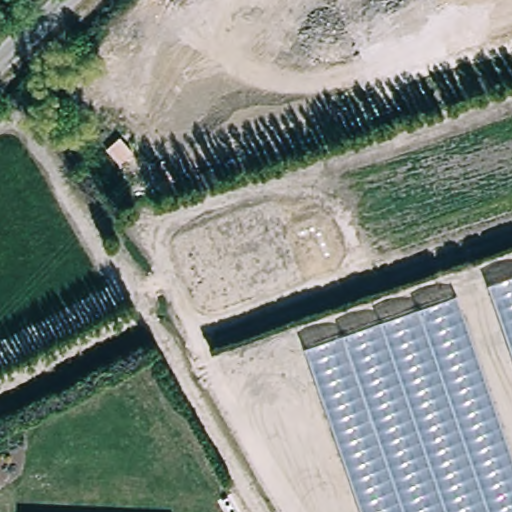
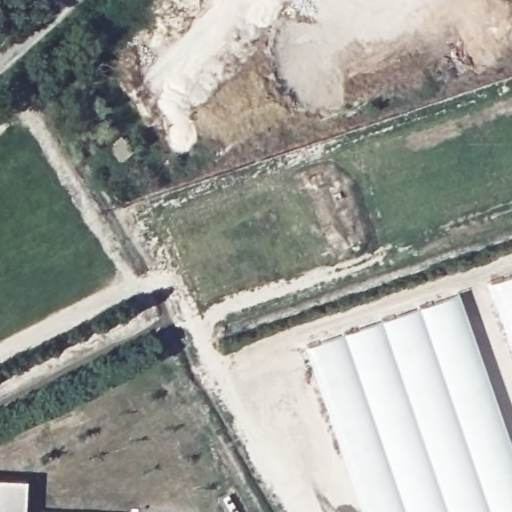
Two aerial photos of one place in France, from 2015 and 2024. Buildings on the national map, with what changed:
unchanged [(135,151),(121,160),(110,144),(125,134),(135,151)]
unchanged [(512,278),(512,341),(492,285),(512,278)]
unchanged [(450,290),(512,461),(512,512),(359,512),(298,340),(450,290)]
new [(24,482),(24,512),(0,512),(0,481),(24,482)]

